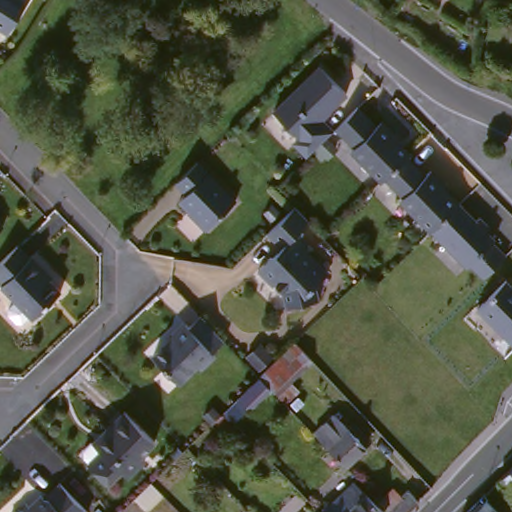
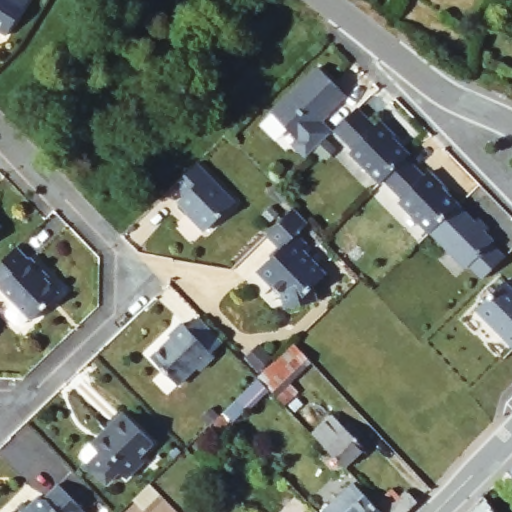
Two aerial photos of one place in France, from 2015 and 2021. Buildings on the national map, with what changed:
unchanged [(0,6),(0,0),(4,0),(0,6)]
unchanged [(333,131),(308,156),(294,142),(299,137),(274,111),(320,66),(346,92),(321,119),(333,131)]
unchanged [(354,147),(336,127),(358,107),(376,126),(381,121),(395,135),(393,137),(409,154),(406,157),(385,177),(382,181),(351,150),(354,147)]
unchanged [(403,197),(385,177),(406,157),(425,176),(430,171),(444,185),(443,187),(458,204),(431,230),(401,200),(403,197)]
unchanged [(206,229),(178,201),(186,194),(176,182),(197,162),(235,201),(206,229)]
unchanged [(483,277),(471,266),(468,268),(431,230),(458,204),(476,221),(479,217),(488,227),(485,231),(493,240),(491,242),(505,257),(483,277)]
unchanged [(268,232),(281,220),(295,206),(306,219),(308,220),(297,231),(307,241),(302,246),(327,272),(314,284),(318,298),(286,306),(281,290),(274,282),(273,283),(258,268),(281,247),(268,232)]
unchanged [(0,229),(0,215),(8,222),(0,229)]
unchanged [(12,312),(13,305),(21,297),(0,276),(0,263),(23,241),(34,254),(36,252),(48,265),(46,268),(64,288),(38,314),(35,312),(27,320),(21,320),(12,312)]
unchanged [(512,290),(512,346),(478,312),(506,284),(512,290)]
unchanged [(221,329),(229,337),(218,348),(220,351),(204,365),(201,362),(183,380),(157,353),(178,333),(176,331),(188,318),(193,322),(204,312),(221,329)]
unchanged [(241,389),(263,368),(300,333),(317,351),(281,386),(275,380),(253,401),(241,389)]
unchanged [(353,426),(359,420),(378,438),(371,444),(351,464),(318,430),(338,410),(353,426)]
unchanged [(153,443),(139,457),(144,462),(126,479),(118,472),(106,483),(88,464),(100,452),(95,447),(111,432),(108,429),(124,413),(153,443)]
unchanged [(502,477),(512,467),(512,487),(502,477)]
unchanged [(358,478),(362,483),(388,510),(386,512),(329,512),(326,509),(344,492),(358,478)]
unchanged [(87,512),(15,512),(14,511),(28,497),(32,502),(44,491),(47,493),(52,493),(66,481),(91,508),(87,512)]
unchanged [(405,493),(412,486),(423,497),(408,512),(397,512),(383,498),(380,495),(384,491),(388,494),(397,485),(405,493)]
unchanged [(501,512),(470,512),(486,497),(501,512)]

